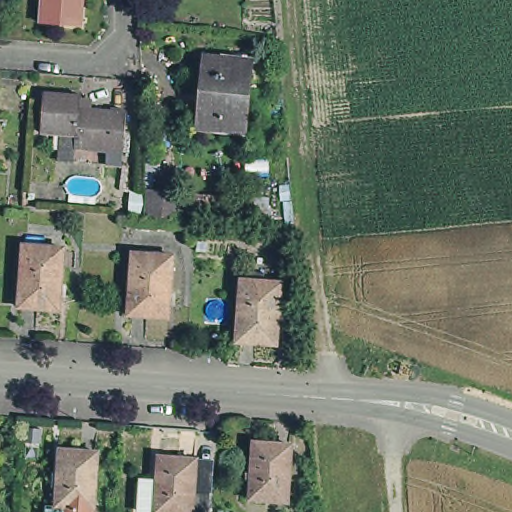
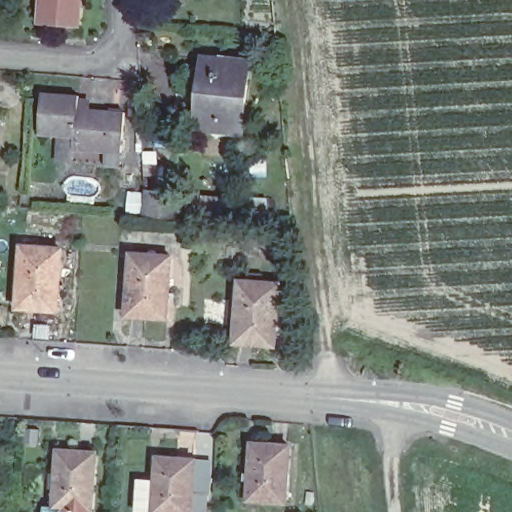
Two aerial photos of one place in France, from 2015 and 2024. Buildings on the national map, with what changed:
unchanged [(42,17),(43,0),(84,0),(83,20),(42,17)]
unchanged [(249,126),(205,122),(212,52),(255,57),(249,126)]
unchanged [(69,129),(42,126),(45,86),(80,89),(80,91),(94,92),(93,102),(127,105),(124,145),(77,142),(68,141),(69,129)]
unchanged [(147,216),(149,191),(183,194),(181,219),(147,216)]
unchanged [(60,297),(20,295),(25,235),(65,238),(60,297)]
unchanged [(173,310),(133,307),(138,247),(177,250),(173,310)]
unchanged [(284,313),(279,312),(277,332),(237,330),(240,270),(282,273),(280,298),(285,299),(284,313)]
unchanged [(293,495),(257,492),(262,437),(297,438),(293,495)]
unchanged [(1,438),(0,452),(0,438),(1,438)]
unchanged [(50,502),(62,504),(65,448),(102,451),(99,506),(97,506),(97,512),(49,512),(50,502)]
unchanged [(192,512),(185,512),(156,510),(161,456),(195,458),(192,512)]

